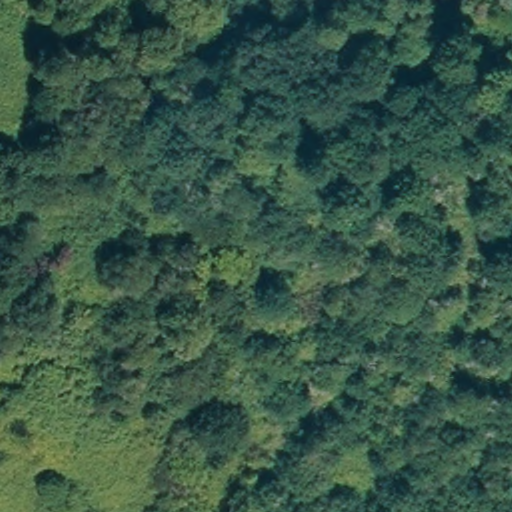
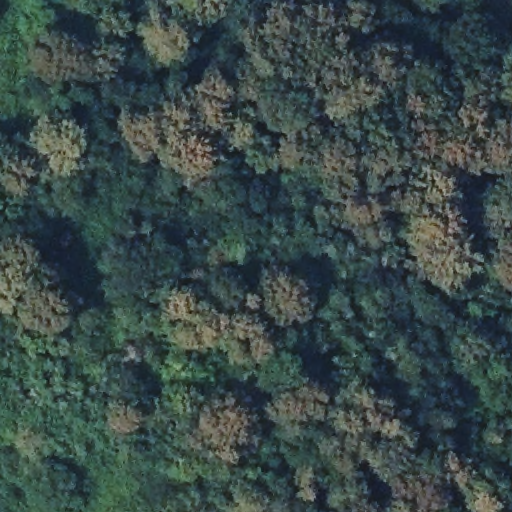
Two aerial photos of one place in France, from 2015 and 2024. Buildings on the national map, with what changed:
[]

